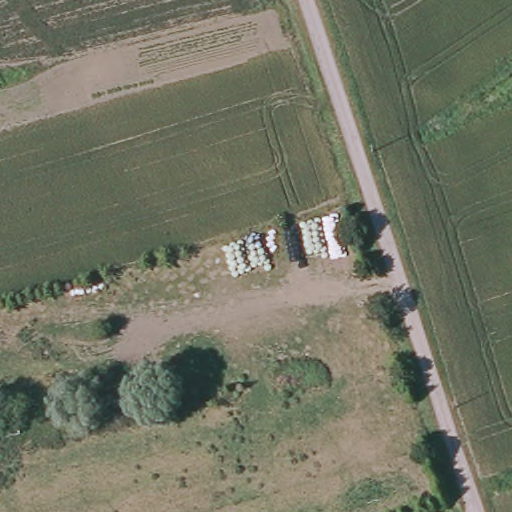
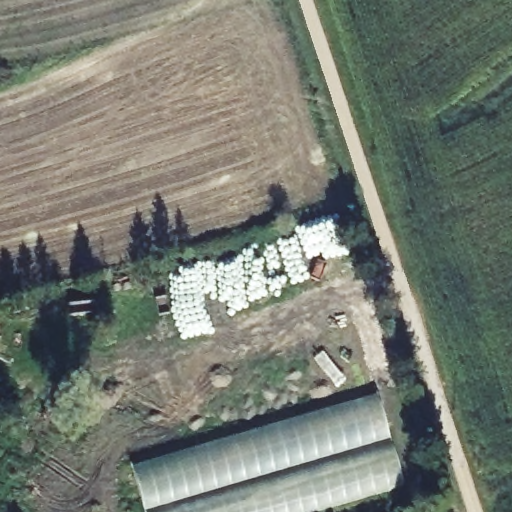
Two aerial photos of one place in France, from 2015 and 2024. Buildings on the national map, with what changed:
new [(404,482),(303,512),(144,512),(130,463),(378,391),(404,482)]

